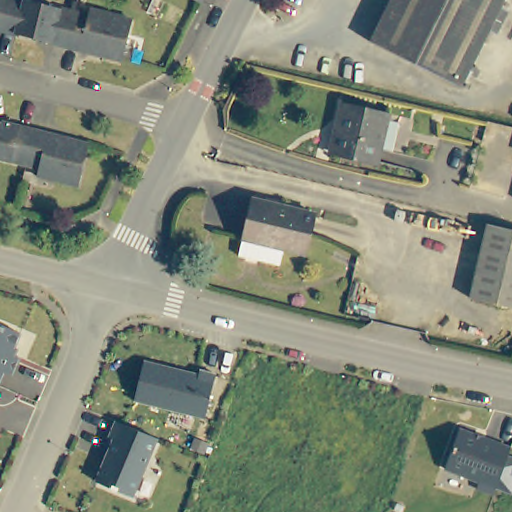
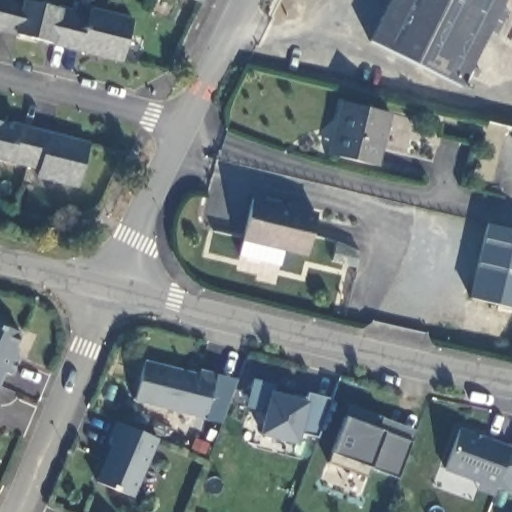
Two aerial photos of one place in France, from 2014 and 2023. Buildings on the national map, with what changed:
unchanged [(0,0),(5,0),(13,2),(14,0),(26,0),(91,17),(94,9),(134,20),(129,42),(0,10),(0,0)]
unchanged [(188,0),(205,0),(202,7),(188,0)]
unchanged [(489,31),(461,87),(369,42),(390,0),(505,0),(501,7),(508,12),(497,35),(489,31)]
unchanged [(0,31),(0,10),(129,42),(124,60),(0,31)]
unchanged [(341,127),(347,104),(392,116),(380,170),(343,161),(333,159),(341,127)]
unchanged [(82,189),(43,178),(44,173),(0,161),(0,120),(94,144),(82,189)]
unchanged [(310,256),(288,251),(285,265),(243,255),(247,240),(257,201),(320,217),(310,256)]
unchanged [(472,298),(489,228),(512,234),(512,308),(472,298)]
unchanged [(20,357),(28,360),(20,377),(12,374),(6,387),(0,385),(0,325),(29,337),(20,357)]
unchanged [(144,406),(154,366),(208,380),(210,375),(225,379),(213,423),(144,406)]
new [(276,385),(273,393),(307,402),(309,393),(332,399),(317,436),(300,432),(296,444),(261,435),(266,412),(245,407),(253,379),(276,385)]
unchanged [(0,417),(0,404),(5,406),(0,417)]
new [(415,431),(411,442),(397,477),(371,467),(366,475),(329,462),(331,452),(344,417),(350,406),(415,431)]
unchanged [(139,501),(103,485),(121,442),(116,440),(124,425),(156,438),(165,442),(139,501)]
unchanged [(484,497),(486,490),(451,476),(452,474),(453,472),(467,436),(512,453),(512,501),(503,497),(500,503),(484,497)]

